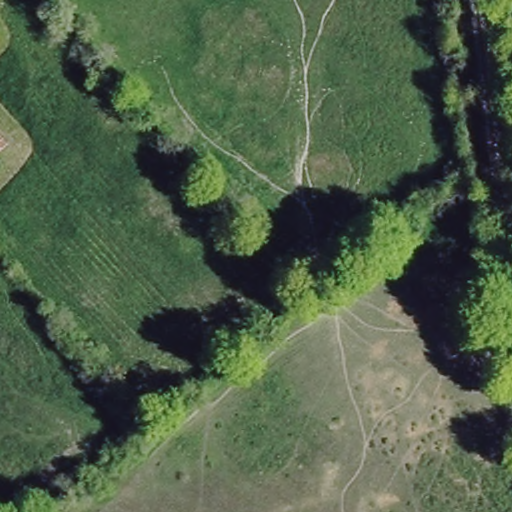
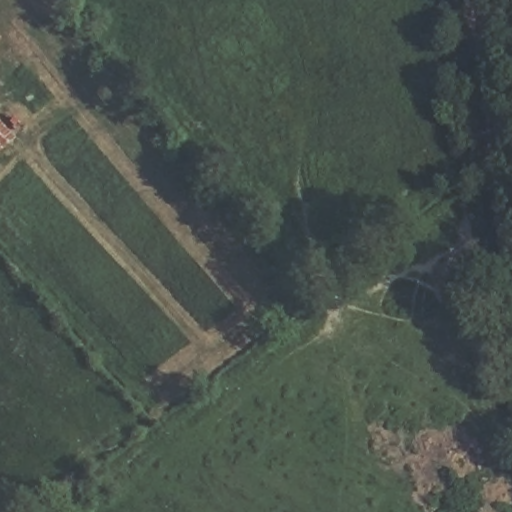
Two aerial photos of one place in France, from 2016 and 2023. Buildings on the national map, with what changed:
unchanged [(1,41),(0,42),(0,41),(1,41)]
unchanged [(9,143),(0,150),(0,131),(9,143)]

